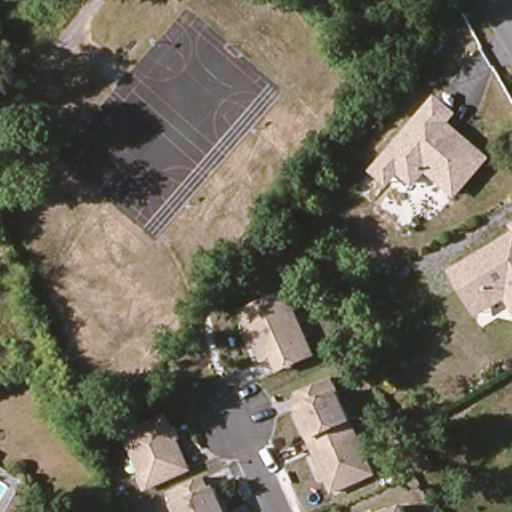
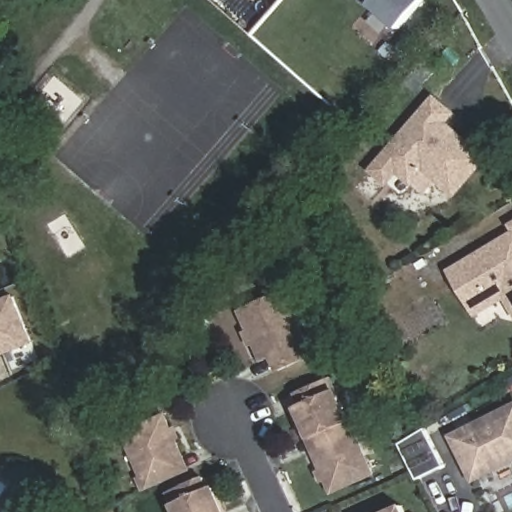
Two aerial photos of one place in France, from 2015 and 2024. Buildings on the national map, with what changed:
new [(255,0),(260,0),(257,3),(255,0)]
new [(370,5),(375,0),(425,0),(400,30),(370,5)]
unchanged [(373,171),(383,159),(435,99),(452,114),(444,123),(441,127),(451,136),(455,133),(485,159),(454,194),(425,169),(412,183),(398,171),(387,183),(373,171)]
unchanged [(512,226),(512,231),(510,228),(512,226)]
unchanged [(450,273),(512,235),(512,307),(511,308),(504,295),(475,313),(472,309),(450,273)]
unchanged [(278,374),(272,359),(261,364),(254,347),(249,350),(243,334),(247,332),(239,312),(286,291),(313,356),(278,374)]
new [(33,343),(0,356),(0,302),(15,297),(33,343)]
unchanged [(332,378),(338,393),(338,394),(347,421),(348,418),(371,474),(330,495),(325,484),(320,485),(316,474),(320,472),(297,409),(300,407),(290,397),(332,378)]
new [(457,448),(450,436),(455,434),(512,405),(512,459),(472,479),(457,448)]
unchanged [(141,492),(136,479),(140,477),(121,435),(166,414),(173,431),(177,429),(182,442),(179,444),(190,471),(141,492)]
new [(424,428),(443,466),(416,479),(398,444),(424,428)]
unchanged [(171,507),(175,505),(167,494),(205,478),(212,489),(216,488),(221,501),(224,497),(229,512),(173,512),(171,507)]
unchanged [(403,505),(406,512),(389,512),(403,505)]

